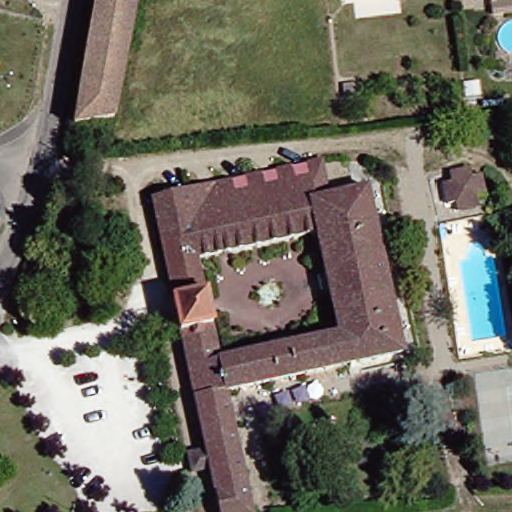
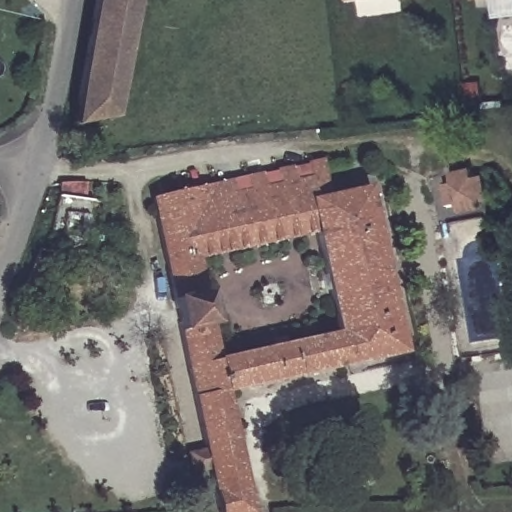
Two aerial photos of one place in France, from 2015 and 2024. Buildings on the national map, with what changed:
unchanged [(69,124),(90,0),(130,0),(110,118),(68,127),(69,124)]
unchanged [(188,204),(204,200),(201,180),(218,176),(222,196),(234,194),(229,174),(249,169),(253,190),(268,186),(264,166),(281,163),(284,183),(299,180),(294,160),(313,156),(317,176),(319,194),(360,187),(395,352),(221,394),(247,512),(211,512),(200,460),(195,441),(146,213),(141,192),(158,189),(162,209),(173,207),(168,187),(185,183),(188,204)]
unchanged [(447,185),(445,178),(464,173),(466,181),(477,179),(483,200),(471,203),(473,210),(454,214),(452,207),(444,209),(438,187),(447,185)]
unchanged [(56,256),(65,258),(63,266),(54,264),(56,256)]

